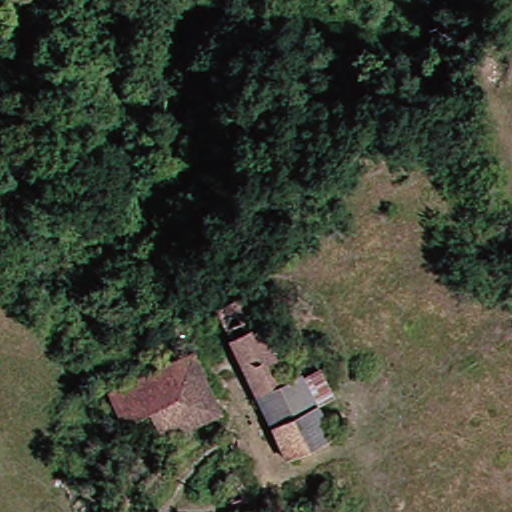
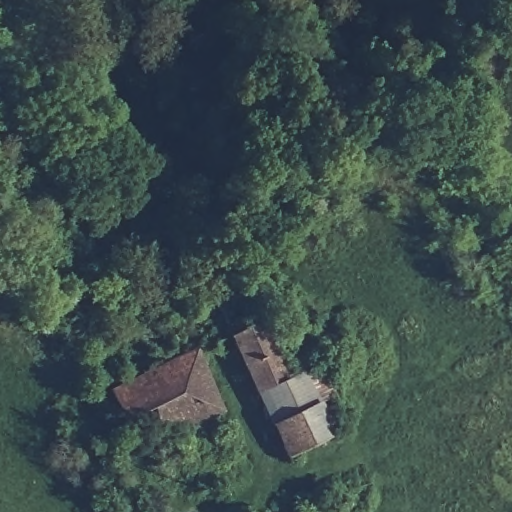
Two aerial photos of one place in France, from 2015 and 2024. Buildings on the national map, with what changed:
unchanged [(324,403),(284,423),(226,302),(253,289),(282,343),(295,341),(324,403)]
unchanged [(171,437),(160,411),(133,419),(118,383),(205,348),(230,413),(171,437)]
unchanged [(324,403),(340,431),(298,451),(284,423),(324,403)]

